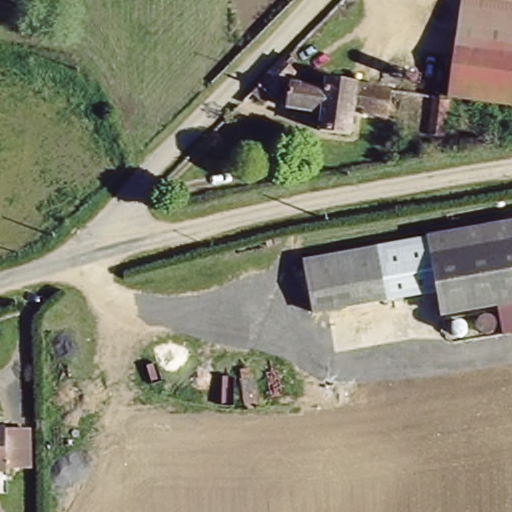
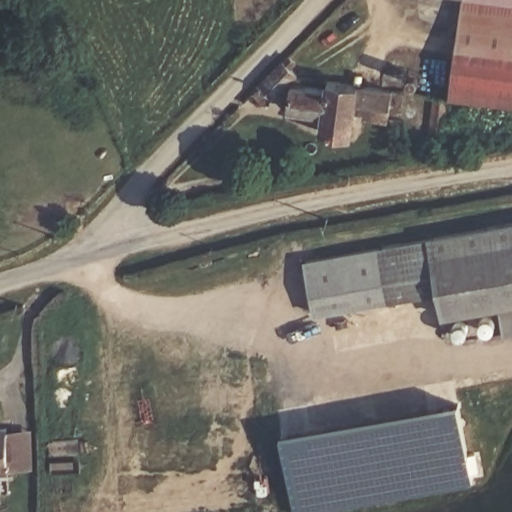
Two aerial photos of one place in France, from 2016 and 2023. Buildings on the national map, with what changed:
unchanged [(512,0),(512,107),(457,105),(458,103),(462,0),(512,0)]
unchanged [(299,62),(291,71),(297,76),(287,86),(267,105),(257,95),(285,65),(293,56),(299,62)]
unchanged [(320,91),(321,85),(323,85),(392,91),(388,124),(361,121),(362,113),(345,111),(343,135),(315,133),(317,116),(285,113),(287,88),(320,91)]
unchanged [(454,138),(440,136),(442,112),(457,114),(454,138)]
unchanged [(512,226),(512,306),(438,318),(425,241),(512,226)]
new [(388,301),(380,248),(424,239),(425,241),(433,294),(388,301)]
unchanged [(388,301),(314,314),(305,261),(380,248),(388,301)]
new [(505,335),(500,308),(512,306),(512,334),(505,335)]
new [(452,404),(467,483),(318,512),(289,512),(275,438),(452,404)]
unchanged [(0,473),(0,436),(18,436),(20,473),(0,473)]

